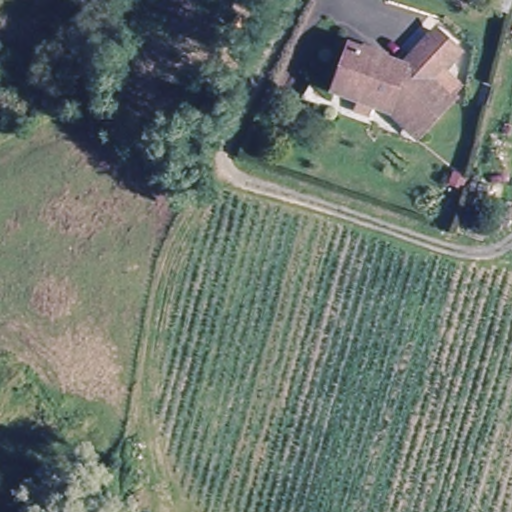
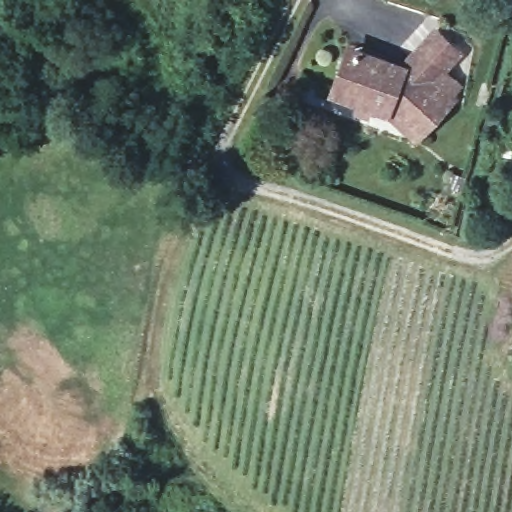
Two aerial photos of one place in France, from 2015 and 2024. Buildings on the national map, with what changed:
unchanged [(440,32),(463,54),(457,61),(440,80),(457,97),(421,136),(392,110),(346,92),(340,91),(356,48),(361,50),(407,67),(440,32)]

